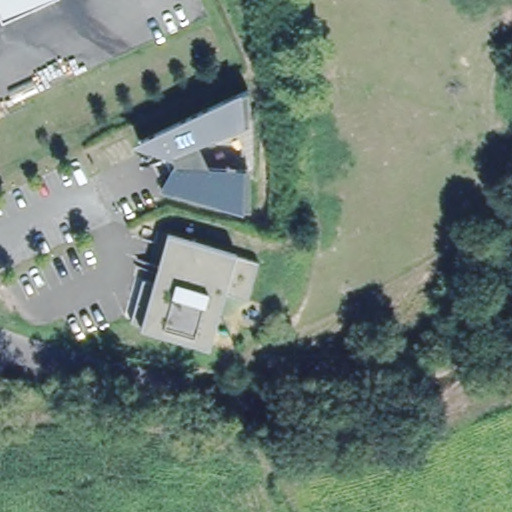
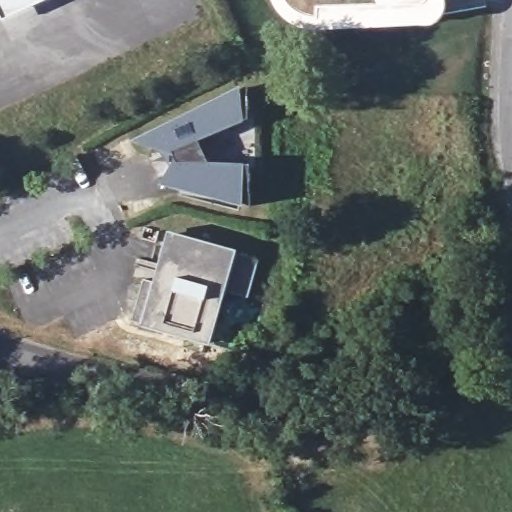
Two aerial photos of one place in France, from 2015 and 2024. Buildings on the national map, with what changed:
unchanged [(0,2),(0,0),(40,0),(6,15),(0,2)]
new [(435,23),(427,26),(302,27),(287,20),(276,7),(273,0),(445,0),(445,2),(443,15),(435,23)]
unchanged [(159,148),(153,146),(150,145),(145,143),(142,141),(140,140),(249,87),(249,120),(196,142),(198,146),(200,145),(205,158),(199,161),(200,163),(250,166),(250,207),(164,184),(166,179),(168,176),(171,172),(175,168),(177,164),(179,163),(173,152),(165,150),(159,148)]
unchanged [(192,338),(135,322),(147,279),(160,283),(165,265),(174,235),(263,260),(252,299),(227,292),(218,324),(212,344),(192,338)]

